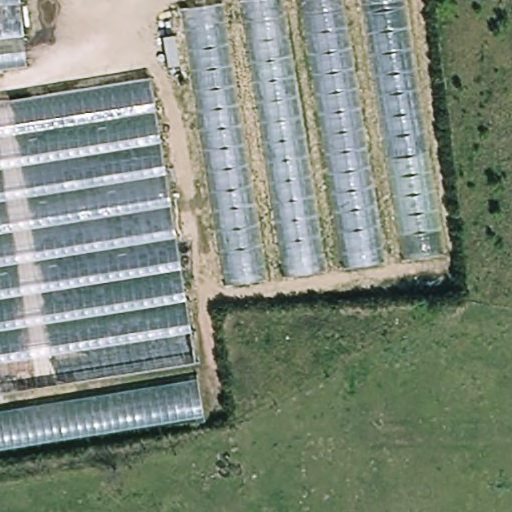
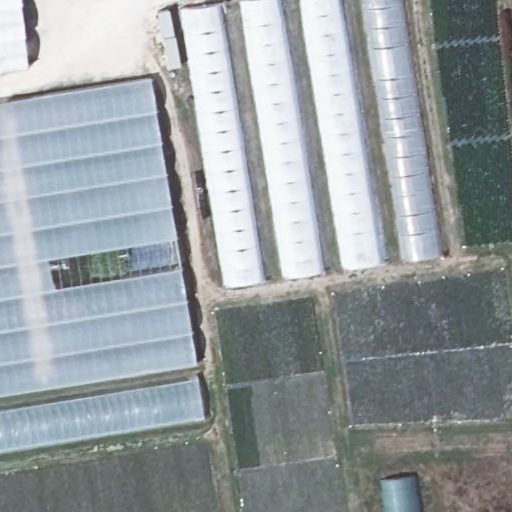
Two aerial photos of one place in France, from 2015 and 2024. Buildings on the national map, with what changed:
unchanged [(25,64),(0,67),(0,0),(17,0),(25,64)]
unchanged [(220,0),(402,0),(442,250),(230,282),(185,5),(220,0)]
unchanged [(150,77),(195,354),(0,385),(0,101),(150,77)]
unchanged [(203,415),(0,449),(0,409),(197,377),(203,415)]
new [(417,512),(382,512),(377,476),(412,472),(417,512)]

